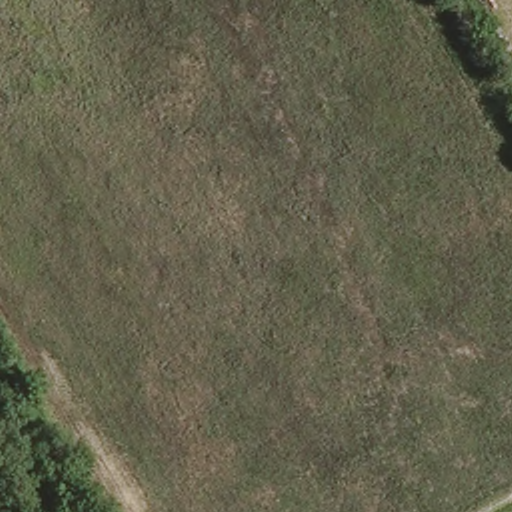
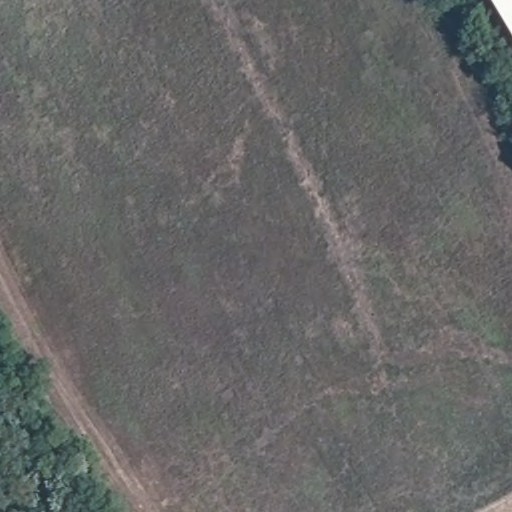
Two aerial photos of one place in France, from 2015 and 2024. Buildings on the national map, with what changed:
new [(487,0),(512,0),(512,40),(487,0)]

